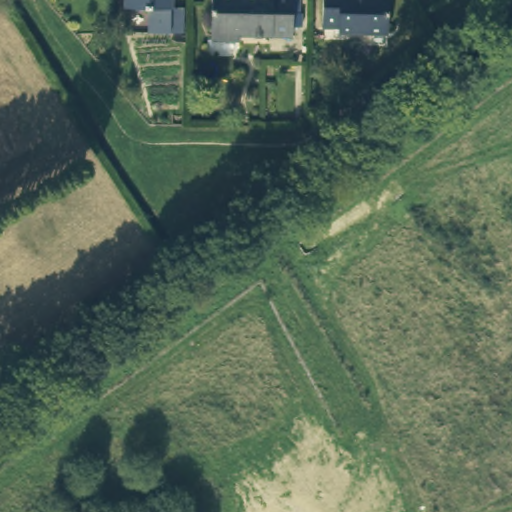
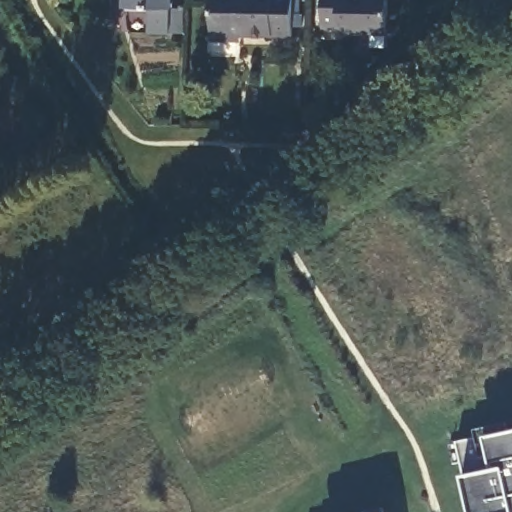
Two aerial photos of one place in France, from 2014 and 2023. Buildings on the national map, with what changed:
unchanged [(149,1),(138,0),(170,0),(170,4),(187,5),(187,31),(170,31),(148,30),(149,1)]
unchanged [(244,34),(244,40),(217,40),(217,0),(293,0),(293,34),(244,34)]
unchanged [(326,0),(391,0),(390,30),(325,27),(326,0)]
new [(458,441),(480,438),(477,428),(510,420),(512,424),(512,512),(473,512),(465,474),(465,471),(458,441)]

